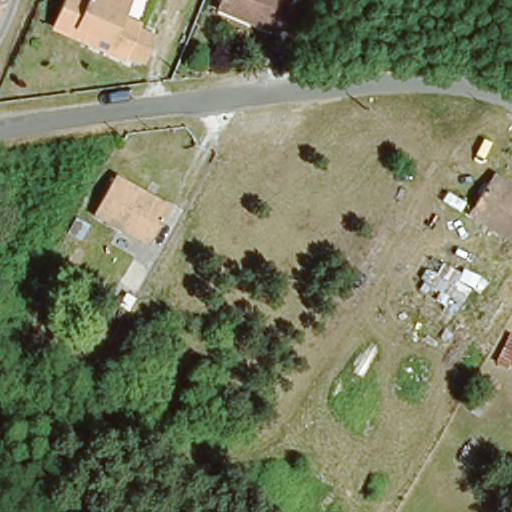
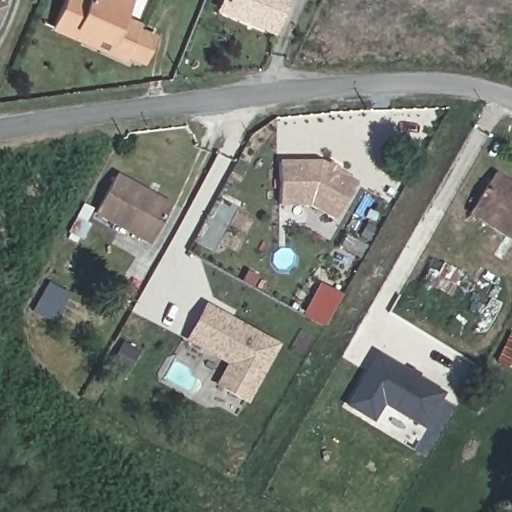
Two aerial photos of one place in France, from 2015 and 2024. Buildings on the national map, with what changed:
unchanged [(0,8),(0,0),(1,0),(4,1),(0,8)]
unchanged [(127,54),(126,57),(107,49),(111,40),(85,28),(81,35),(52,22),(64,0),(131,0),(126,12),(142,21),(140,27),(156,34),(143,61),(127,54)]
unchanged [(217,4),(218,0),(283,0),(272,27),(217,4)]
new [(277,208),(276,163),(317,161),(325,165),(327,162),(337,167),(335,170),(356,182),(333,222),(306,206),(277,208)]
unchanged [(488,177),(492,171),(512,183),(512,241),(466,211),(488,177)]
unchanged [(149,242),(92,210),(112,174),(169,205),(149,242)]
new [(319,284),(340,295),(323,327),(302,316),(319,284)]
new [(246,406),(212,388),(225,364),(183,341),(204,304),(278,344),(246,406)]
unchanged [(512,373),(489,361),(503,335),(512,339),(512,373)]
new [(422,428),(381,404),(371,420),(343,407),(376,353),(445,394),(422,428)]

